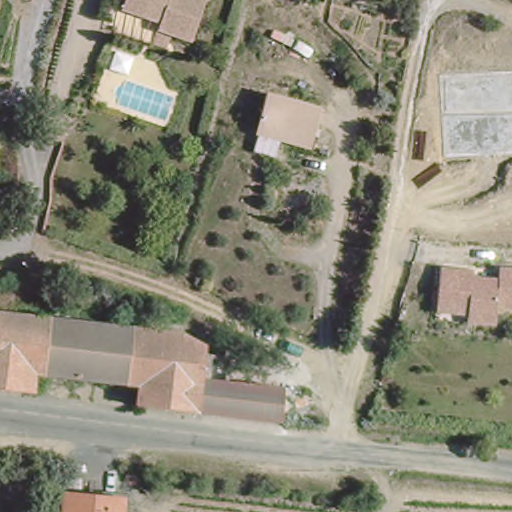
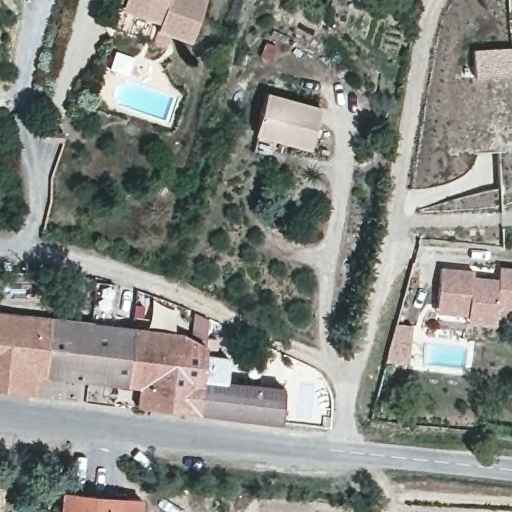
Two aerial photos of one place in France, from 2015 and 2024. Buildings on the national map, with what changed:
unchanged [(158,26),(161,19),(123,6),(125,0),(203,0),(191,36),(158,26)]
new [(512,74),(474,75),(473,49),(512,47),(512,74)]
unchanged [(264,93),(321,107),(308,148),(251,134),(264,93)]
unchanged [(491,267),(512,269),(512,310),(491,309),(489,321),(432,317),(435,273),(489,273),(491,267)]
unchanged [(206,343),(206,351),(226,353),(230,355),(228,377),(283,383),(280,417),(241,413),(136,403),(137,383),(35,373),(33,392),(0,389),(0,313),(111,323),(181,331),(206,343)]
unchanged [(60,492),(118,496),(137,495),(139,512),(59,512),(60,492)]

